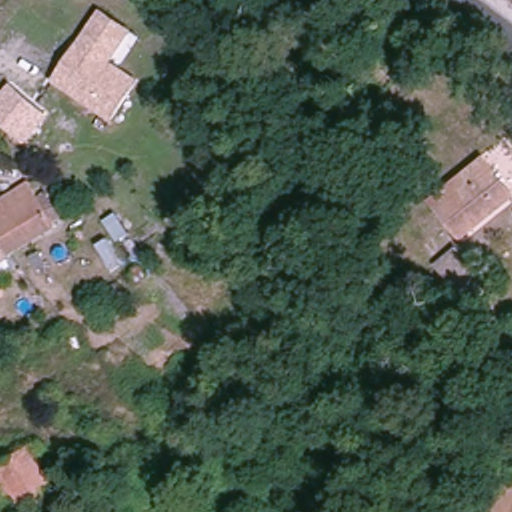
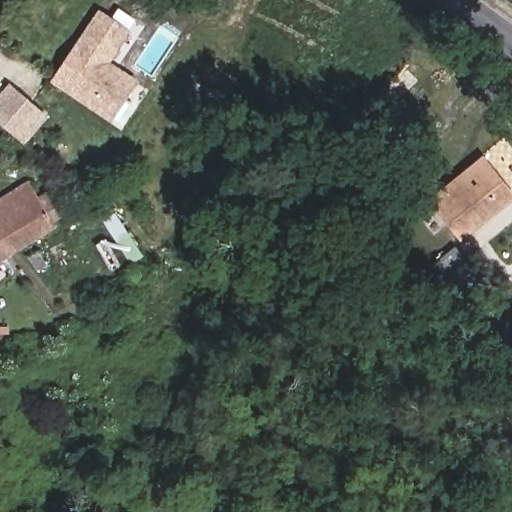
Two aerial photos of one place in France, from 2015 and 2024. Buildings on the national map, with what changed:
unchanged [(117,60),(145,80),(115,121),(53,80),(103,7),(134,29),(117,60)]
unchanged [(0,120),(0,97),(16,82),(53,116),(25,145),(0,120)]
unchanged [(447,191),(475,166),(505,200),(467,232),(458,222),(436,200),(447,191)]
unchanged [(0,204),(36,183),(60,221),(16,248),(0,226),(0,204)]
unchanged [(0,226),(16,248),(0,257),(0,226)]
unchanged [(432,264),(455,247),(480,279),(460,298),(432,264)]
unchanged [(0,270),(0,261),(3,268),(0,270)]
unchanged [(71,391),(51,414),(38,399),(58,377),(71,391)]
unchanged [(31,512),(0,512),(0,464),(31,445),(61,494),(31,512)]

